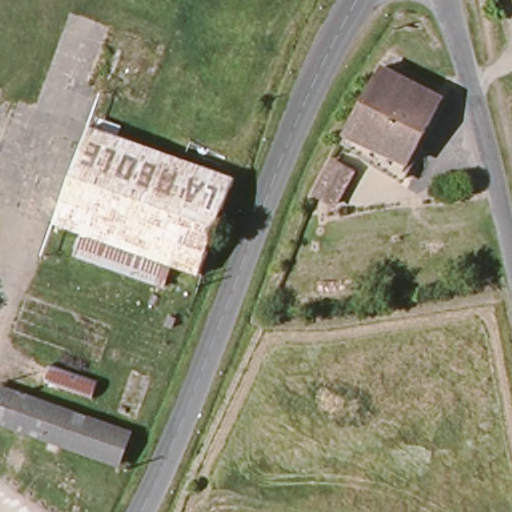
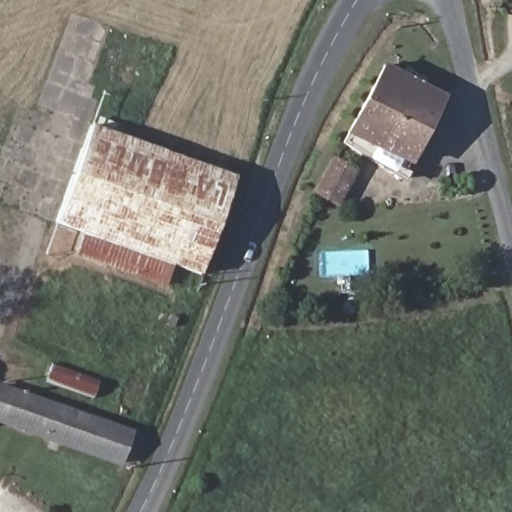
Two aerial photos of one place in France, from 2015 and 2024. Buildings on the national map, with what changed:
unchanged [(448,95),(404,180),(343,142),(384,62),(448,95)]
unchanged [(238,184),(202,281),(172,270),(165,291),(77,260),(86,238),(57,227),(93,130),(238,184)]
unchanged [(360,174),(343,209),(317,195),(334,162),(360,174)]
unchanged [(180,319),(176,328),(168,325),(172,316),(180,319)]
unchanged [(101,380),(94,398),(47,380),(54,363),(101,380)]
unchanged [(121,467),(0,421),(0,382),(134,431),(121,467)]

